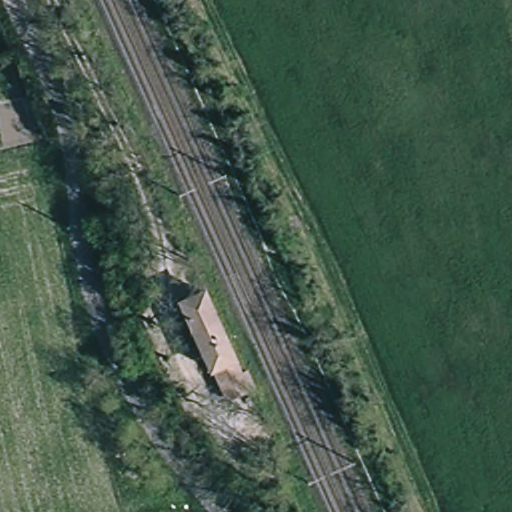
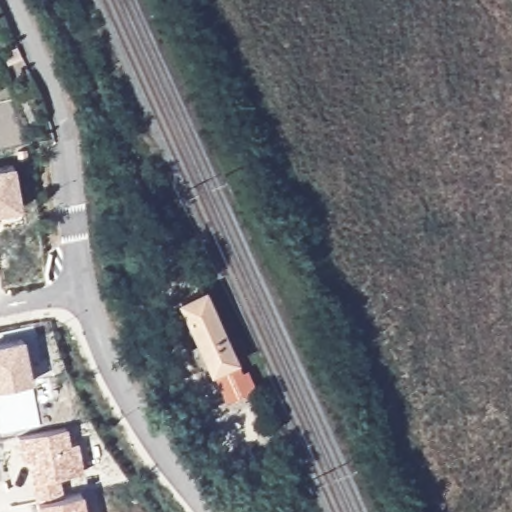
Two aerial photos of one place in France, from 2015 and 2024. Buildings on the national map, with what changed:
new [(14,164),(22,208),(0,211),(0,166),(14,164)]
unchanged [(228,399),(214,368),(212,369),(180,301),(203,291),(240,372),(246,369),(254,388),(228,399)]
new [(23,337),(31,380),(28,381),(36,419),(0,425),(0,341),(23,337)]
new [(85,512),(37,512),(35,502),(28,458),(21,458),(16,434),(65,425),(69,442),(76,441),(83,471),(58,476),(61,495),(81,492),(85,512)]

